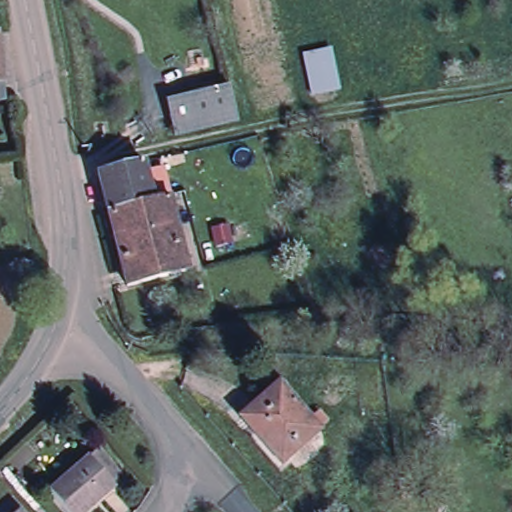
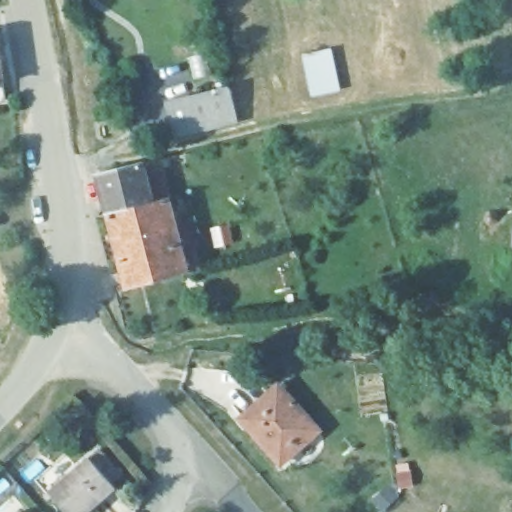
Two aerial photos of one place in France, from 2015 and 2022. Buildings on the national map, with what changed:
unchanged [(325,48),(333,89),(306,93),(299,53),(325,48)]
unchanged [(213,87),(224,85),(231,117),(222,119),(188,127),(168,132),(160,99),(185,94),(213,87)]
unchanged [(167,159),(176,193),(158,198),(143,202),(133,167),(167,159)]
unchanged [(133,163),(133,167),(143,202),(98,215),(87,174),(133,163)]
unchanged [(143,202),(158,198),(171,248),(110,263),(98,215),(143,202)]
unchanged [(176,272),(116,287),(110,263),(171,248),(176,272)]
unchanged [(276,470),(239,429),(243,424),(236,415),(274,382),(313,428),(280,456),(285,462),(276,470)]
unchanged [(60,512),(43,493),(83,459),(92,452),(115,477),(106,486),(109,489),(83,512),(60,512)]
unchanged [(17,512),(11,512),(14,509),(17,512)]

